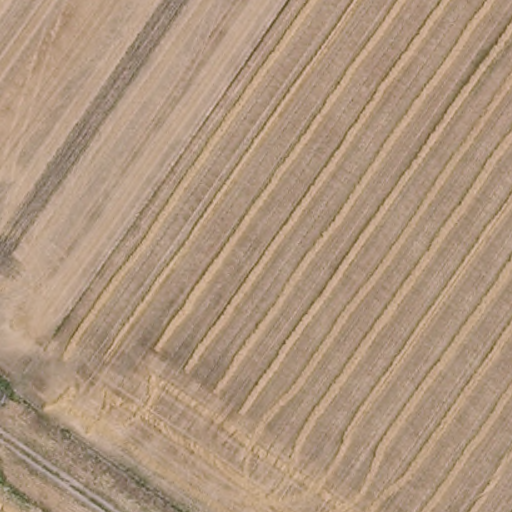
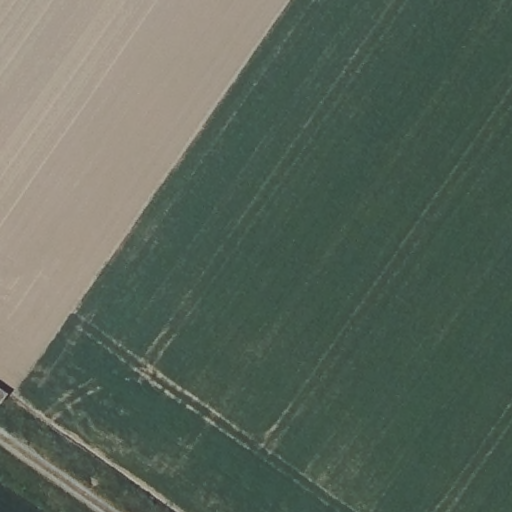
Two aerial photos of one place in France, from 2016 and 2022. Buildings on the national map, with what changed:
unchanged [(0,403),(0,390),(8,393),(0,403)]

